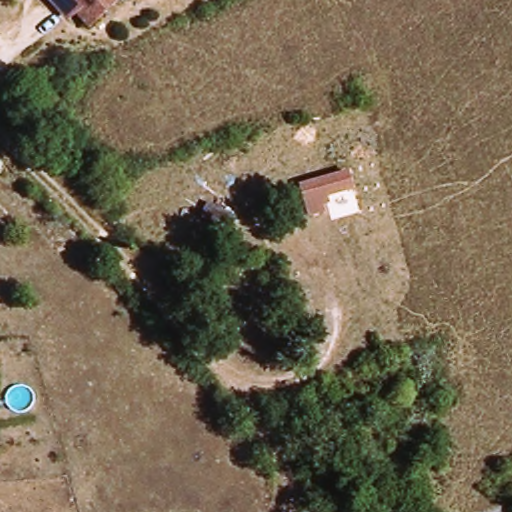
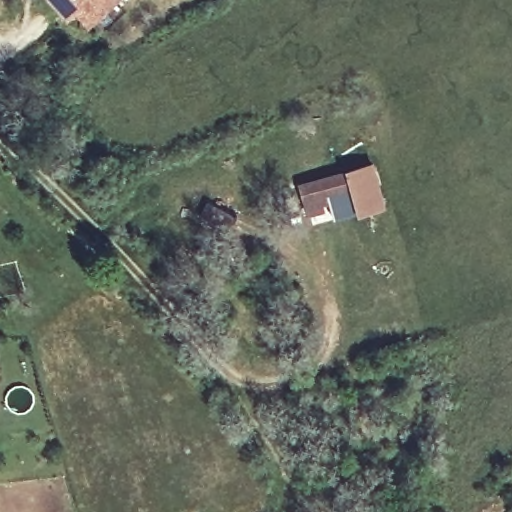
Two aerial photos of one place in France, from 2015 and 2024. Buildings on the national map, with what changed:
unchanged [(121,2),(90,30),(64,0),(119,0),(121,2)]
new [(387,207),(359,215),(337,219),(330,194),(347,190),(342,174),(373,163),(387,207)]
unchanged [(317,205),(320,212),(303,217),(299,201),(295,185),(342,174),(347,190),(320,197),(321,204),(317,205)]
unchanged [(229,216),(222,231),(193,215),(200,202),(229,216)]

